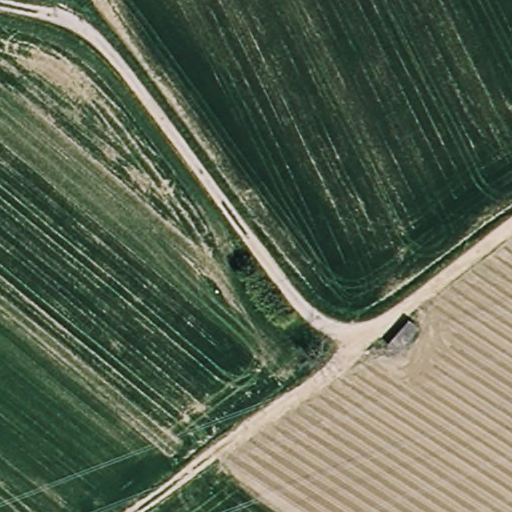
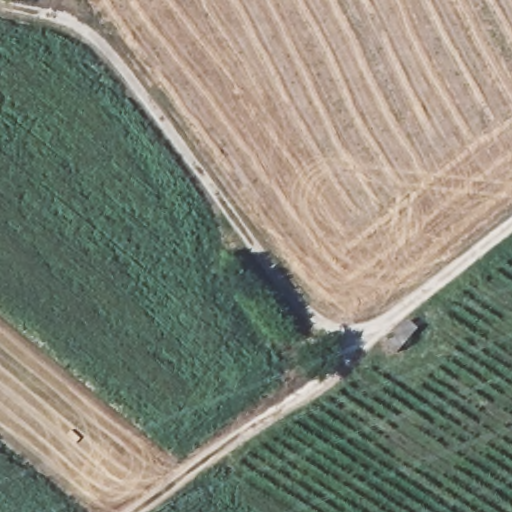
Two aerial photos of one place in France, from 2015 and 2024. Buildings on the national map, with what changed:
unchanged [(389,343),(403,327),(411,319),(418,326),(411,334),(397,350),(389,343)]

